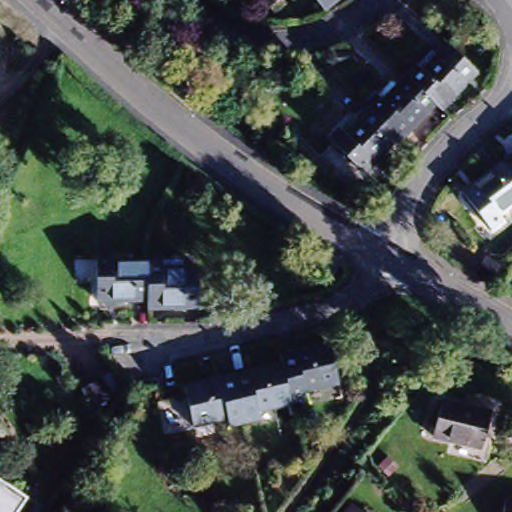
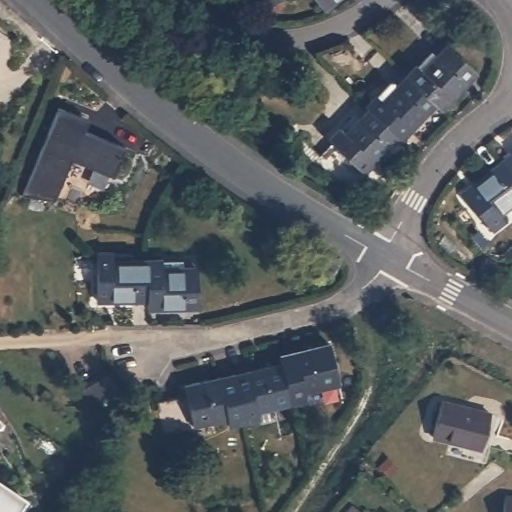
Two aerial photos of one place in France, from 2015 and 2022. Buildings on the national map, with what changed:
unchanged [(261,0),(274,0),(266,7),(261,0)]
unchanged [(315,0),(335,0),(323,10),(315,0)]
unchanged [(435,104),(404,76),(415,65),(421,70),(445,46),(476,74),(441,110),(435,104)]
unchanged [(374,96),(380,101),(404,76),(435,104),(400,142),(397,139),(372,115),(366,109),(364,107),(374,96)]
new [(59,107),(89,121),(85,129),(127,147),(114,176),(73,158),(54,201),(21,197),(59,107)]
unchanged [(372,115),(397,139),(363,174),(327,140),(337,129),(343,135),(366,109),(372,115)]
unchanged [(501,162),(512,154),(512,177),(501,162)]
unchanged [(497,216),(503,223),(492,232),(461,193),(501,162),(512,177),(512,205),(497,216)]
unchanged [(96,303),(95,254),(111,253),(111,266),(145,266),(146,302),(96,303)]
unchanged [(146,302),(145,266),(145,260),(161,260),(162,268),(195,267),(196,307),(146,309),(146,302)]
unchanged [(290,383),(284,361),(282,352),(332,341),(342,380),(307,388),(309,397),(293,400),(290,383)]
unchanged [(238,382),(236,372),(284,361),(290,383),(293,400),(260,407),(262,415),(247,418),(238,382)]
unchanged [(77,385),(96,377),(107,372),(116,391),(105,396),(86,405),(77,385)]
unchanged [(233,422),(230,414),(197,422),(190,392),(188,385),(236,372),(238,382),(247,418),(233,422)]
unchanged [(196,422),(197,427),(168,435),(158,400),(190,392),(197,422),(196,422)]
unchanged [(440,401),(487,412),(479,448),(430,437),(440,401)]
unchanged [(25,498),(0,483),(0,477),(31,497),(21,512),(16,512),(25,498)]
unchanged [(25,498),(16,512),(0,512),(0,483),(25,498)]
unchanged [(505,487),(512,487),(512,512),(501,512),(505,487)]
unchanged [(361,490),(388,509),(385,512),(345,512),(361,490)]

